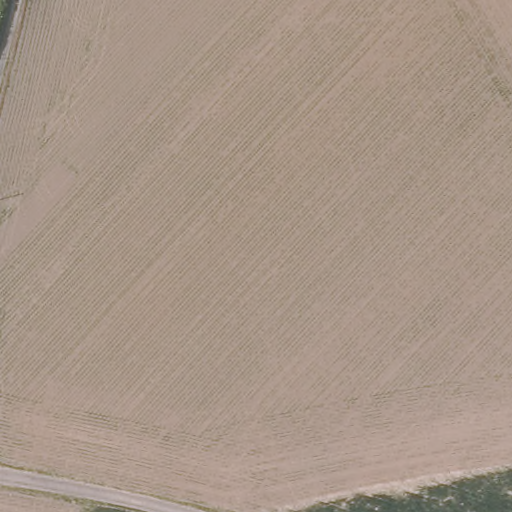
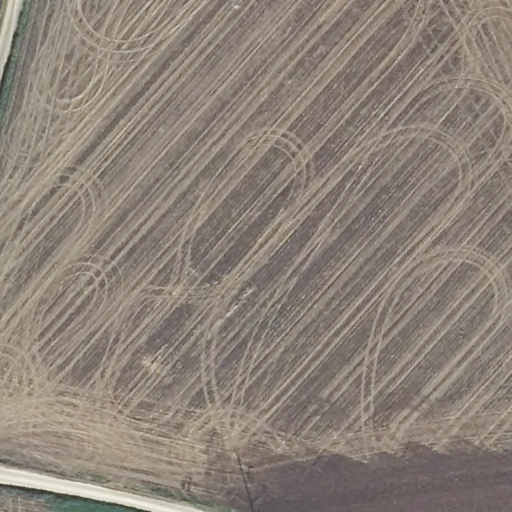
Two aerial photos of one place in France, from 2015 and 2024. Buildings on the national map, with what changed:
[]

